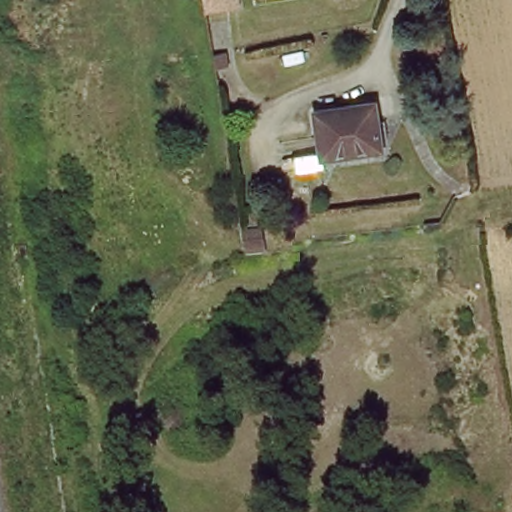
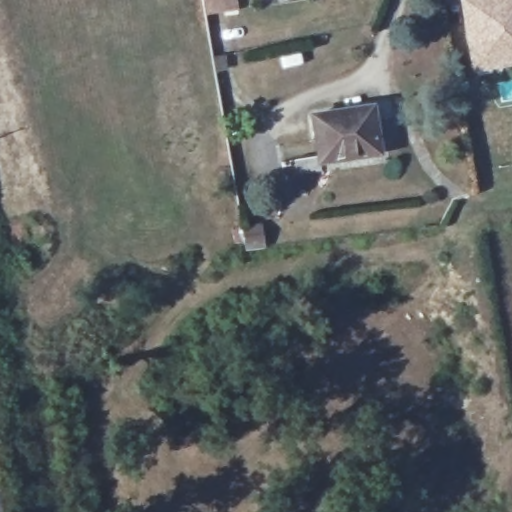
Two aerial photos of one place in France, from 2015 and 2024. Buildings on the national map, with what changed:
unchanged [(202,0),(224,0),(226,17),(204,19),(202,0)]
new [(512,67),(471,73),(460,0),(512,0),(512,67)]
unchanged [(374,107),(380,157),(353,159),(353,154),(321,157),(315,114),(374,107)]

